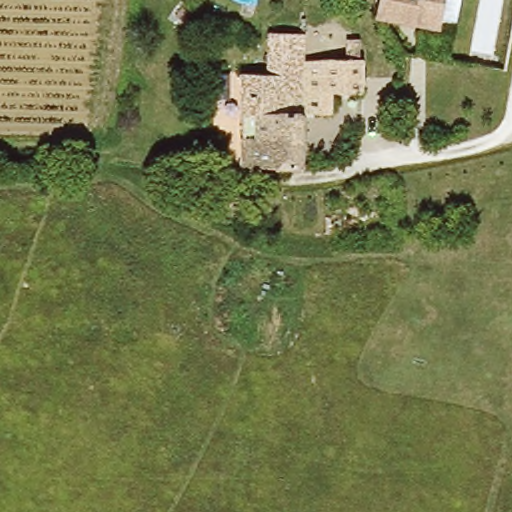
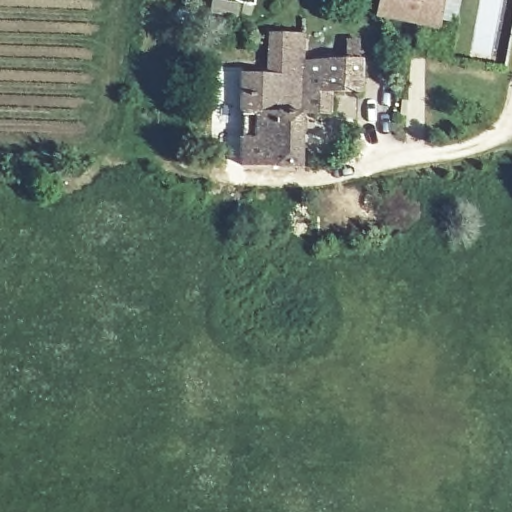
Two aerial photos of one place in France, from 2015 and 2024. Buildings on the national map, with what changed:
unchanged [(445,28),(448,28),(445,41),(443,40),(425,36),(427,25),(376,15),(379,0),(444,0),(439,26),(445,28)]
unchanged [(264,73),(265,33),(300,34),(299,61),(357,59),(356,93),(326,92),(326,115),(298,114),(296,167),(238,166),(238,108),(238,73),(264,73)]

